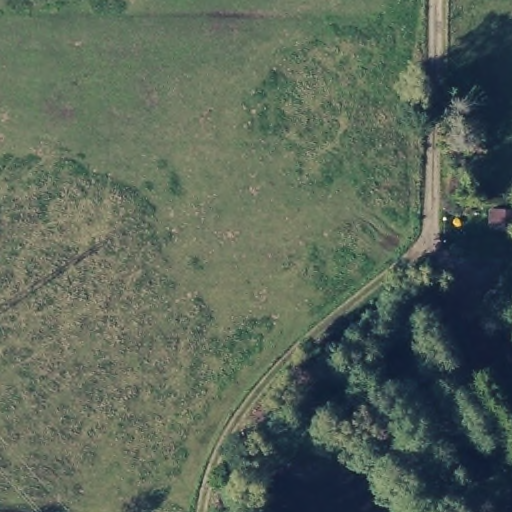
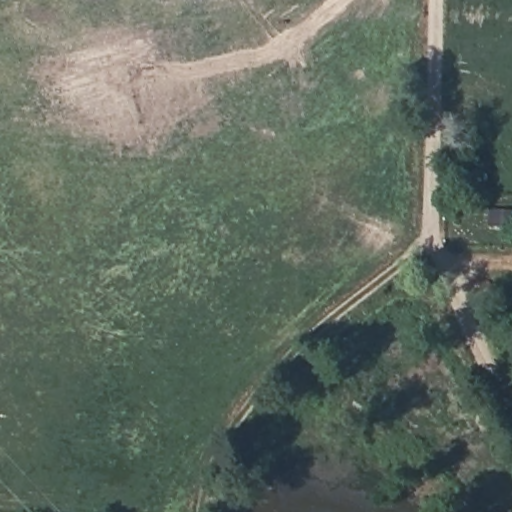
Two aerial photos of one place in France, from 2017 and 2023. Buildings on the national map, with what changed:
unchanged [(497,212),(498,197),(512,199),(512,214),(497,212)]

